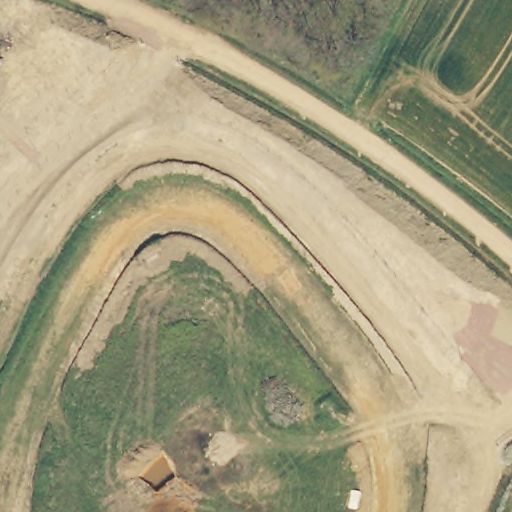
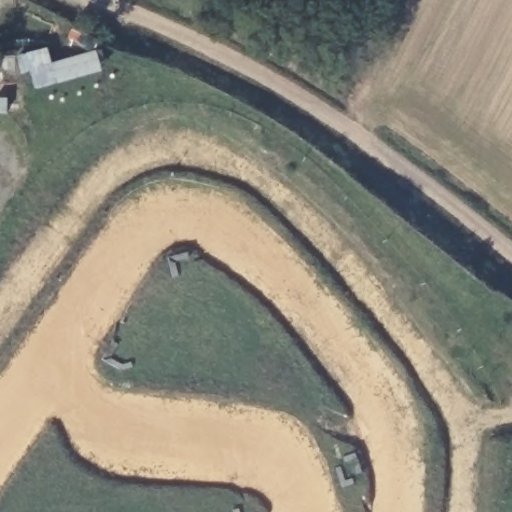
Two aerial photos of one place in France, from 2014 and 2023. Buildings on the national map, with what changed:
new [(101,70),(35,89),(29,70),(26,70),(25,66),(22,67),(19,56),(47,47),(52,62),(96,50),(101,70)]
demolished [(0,192),(0,186),(3,187),(0,192)]

